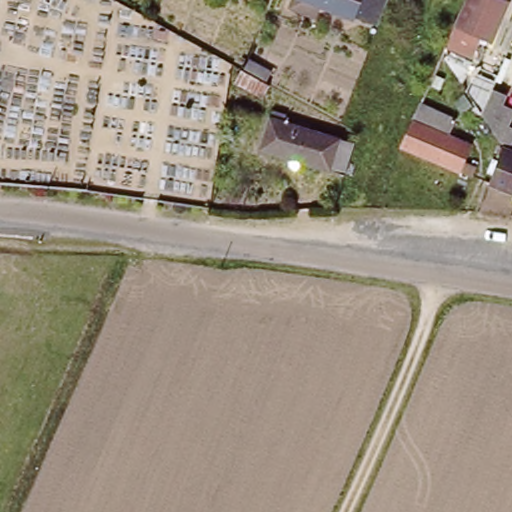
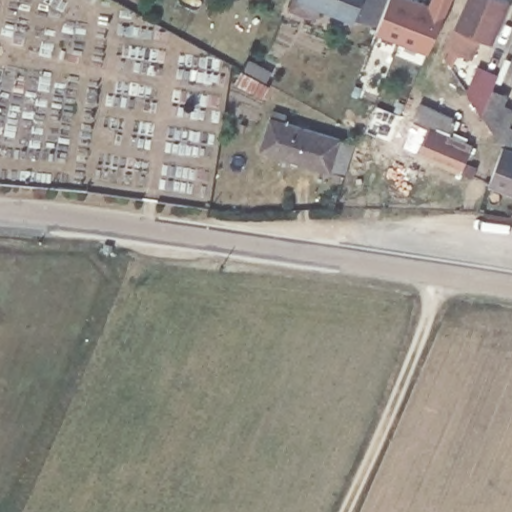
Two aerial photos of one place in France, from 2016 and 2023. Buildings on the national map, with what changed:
unchanged [(377,27),(357,19),(301,0),(389,0),(377,27)]
new [(417,1),(402,38),(379,28),(390,0),(416,0),(417,1)]
new [(430,6),(433,0),(452,0),(430,49),(402,38),(417,1),(430,6)]
unchanged [(441,60),(467,0),(498,0),(511,6),(492,50),(480,46),(469,71),(461,89),(441,60)]
unchanged [(252,52),(260,56),(255,71),(246,66),(252,52)]
unchanged [(507,101),(503,110),(512,113),(512,123),(500,150),(480,120),(470,104),(481,80),(497,87),(494,95),(507,101)]
unchanged [(260,146),(270,114),(347,135),(342,171),(260,146)]
unchanged [(407,149),(420,121),(480,147),(468,175),(407,149)]
unchanged [(491,191),(505,155),(512,158),(512,199),(491,191)]

